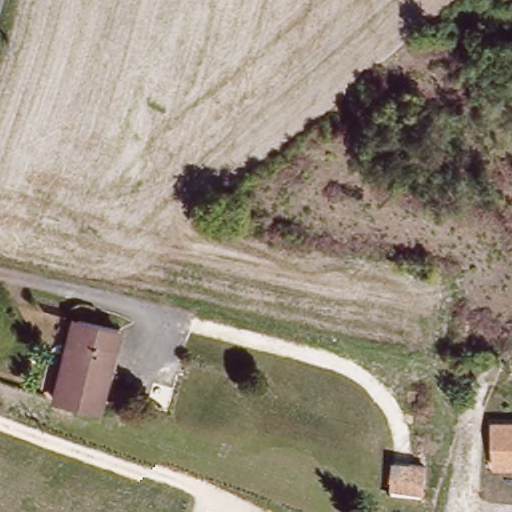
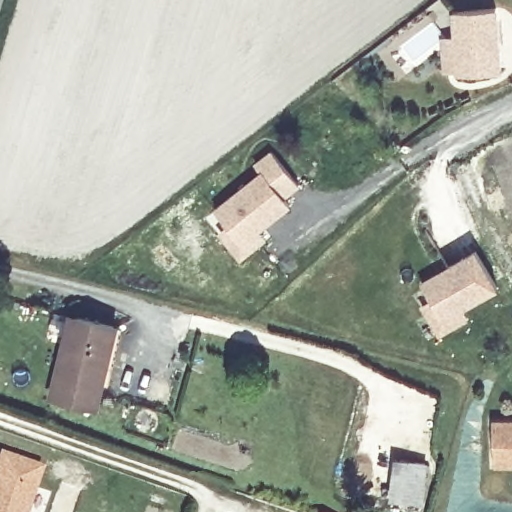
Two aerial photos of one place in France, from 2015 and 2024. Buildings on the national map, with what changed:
new [(455,35),(453,11),(496,6),(501,69),(458,73),(458,69),(443,70),(441,40),(445,36),(455,35)]
new [(215,211),(262,172),(255,165),(271,151),(298,184),(283,197),(290,204),(258,230),(266,239),(240,261),(217,234),(226,226),(215,211)]
new [(423,285),(477,252),(499,288),(454,315),(465,309),(471,320),(441,337),(422,306),(433,300),(423,285)]
unchanged [(59,392),(76,316),(120,326),(101,402),(59,392)]
unchanged [(512,415),(512,458),(501,458),(501,415),(512,415)]
demolished [(439,440),(435,457),(417,454),(420,438),(439,440)]
new [(42,469),(28,512),(0,512),(0,453),(42,469)]
unchanged [(383,498),(389,456),(420,460),(419,463),(436,467),(426,494),(415,493),(413,503),(383,498)]

